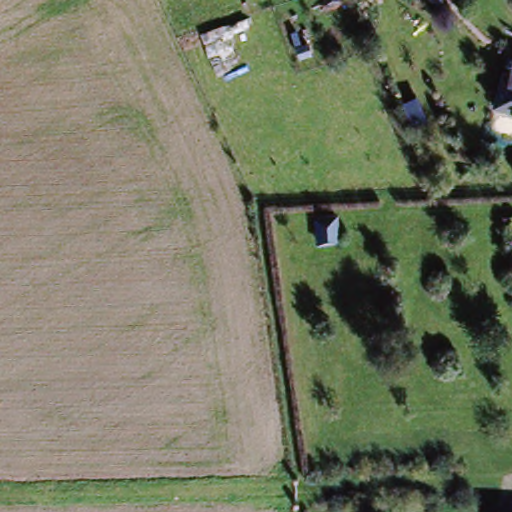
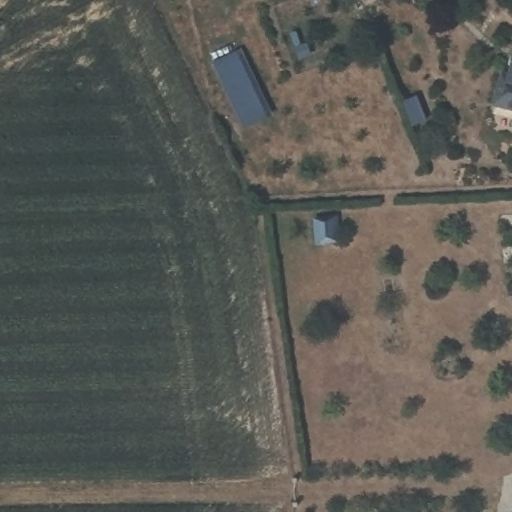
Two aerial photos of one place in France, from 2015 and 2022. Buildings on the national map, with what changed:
new [(213,61),(242,48),(272,115),(244,127),(213,61)]
unchanged [(499,85),(506,86),(510,69),(512,69),(512,121),(494,117),(499,85)]
unchanged [(335,222),(338,242),(316,247),(314,225),(335,222)]

